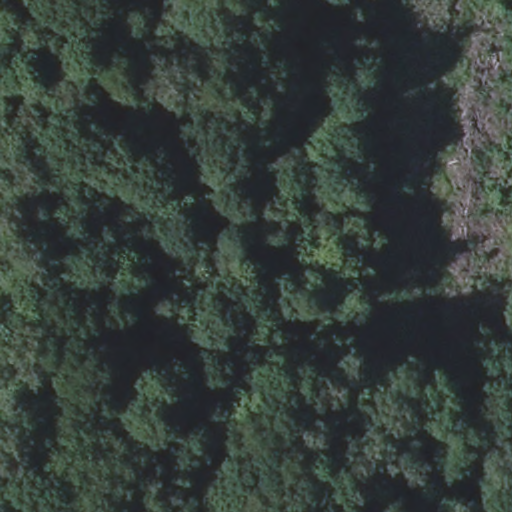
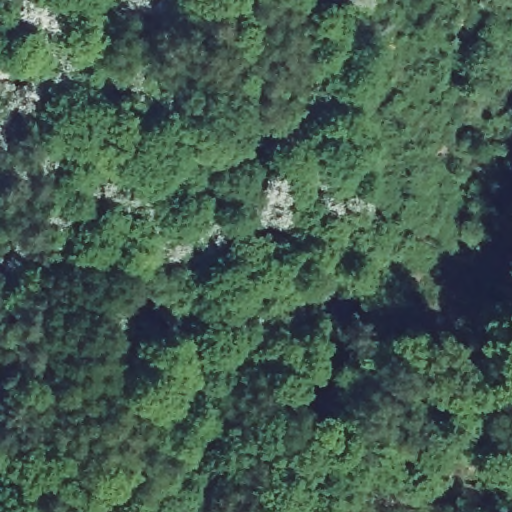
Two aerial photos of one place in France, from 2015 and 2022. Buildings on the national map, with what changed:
[]

